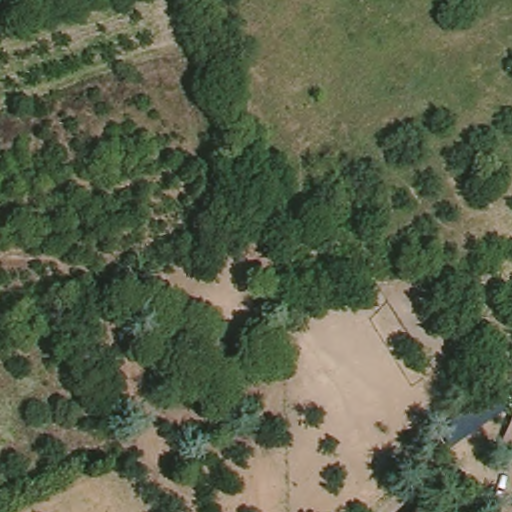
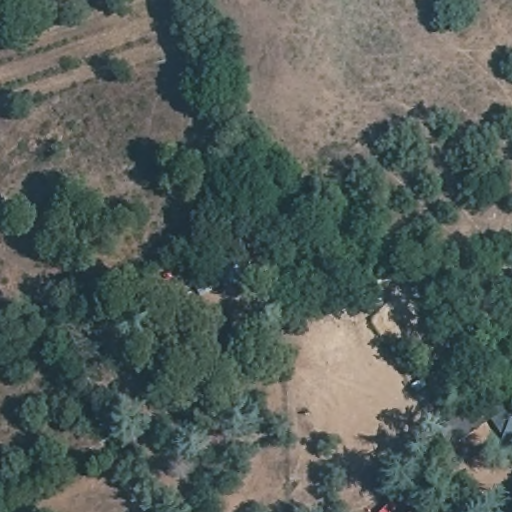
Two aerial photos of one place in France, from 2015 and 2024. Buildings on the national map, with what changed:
unchanged [(50,353),(37,359),(28,341),(42,336),(50,353)]
unchanged [(512,437),(512,456),(505,453),(512,437)]
unchanged [(422,512),(425,509),(428,512),(422,512)]

